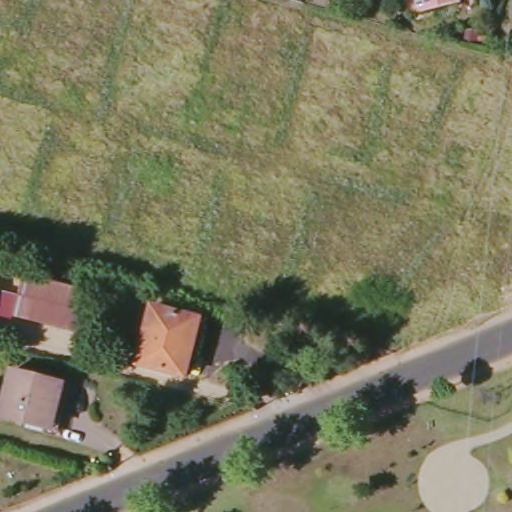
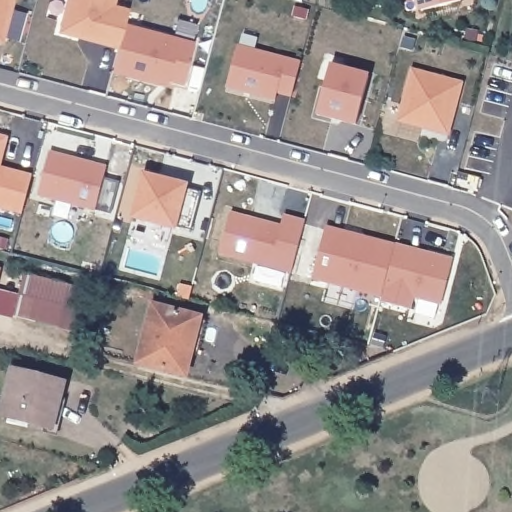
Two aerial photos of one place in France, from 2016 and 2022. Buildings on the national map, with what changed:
new [(3,41),(0,41),(0,0),(14,0),(3,41)]
new [(183,84),(168,80),(167,85),(114,72),(119,47),(59,32),(67,0),(117,0),(116,5),(130,8),(126,23),(195,41),(183,84)]
unchanged [(466,5),(428,15),(424,0),(464,0),(466,5)]
new [(277,94),(274,102),(228,89),(239,44),(302,61),(292,96),(277,94)]
new [(318,116),(331,63),(370,74),(357,125),(318,116)]
new [(398,121),(411,69),(464,82),(449,135),(398,121)]
new [(0,208),(0,135),(10,138),(2,167),(33,176),(22,214),(0,208)]
new [(41,196),(51,151),(108,166),(104,179),(118,183),(110,214),(41,196)]
new [(178,225),(177,230),(131,219),(143,172),(190,185),(189,189),(202,192),(192,230),(178,225)]
new [(221,255),(232,211),(282,225),(284,215),(305,220),(291,272),(221,255)]
new [(415,298),(412,308),(381,300),(383,296),(314,280),(326,226),(453,258),(441,304),(415,298)]
unchanged [(90,294),(80,332),(14,315),(25,277),(90,294)]
unchanged [(155,310),(203,322),(189,379),(140,366),(155,310)]
unchanged [(65,386),(54,433),(4,420),(15,373),(65,386)]

